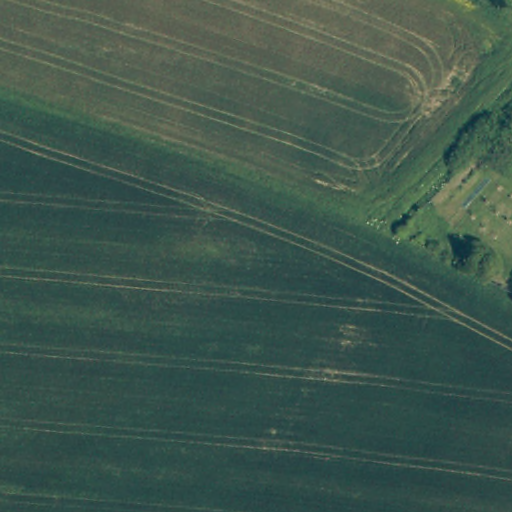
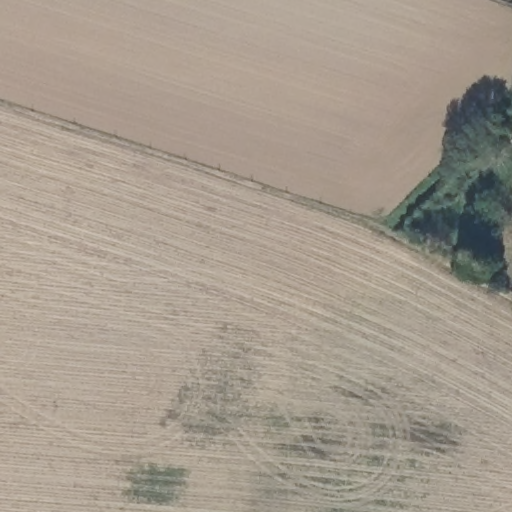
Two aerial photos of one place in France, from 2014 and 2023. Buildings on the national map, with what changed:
[]

